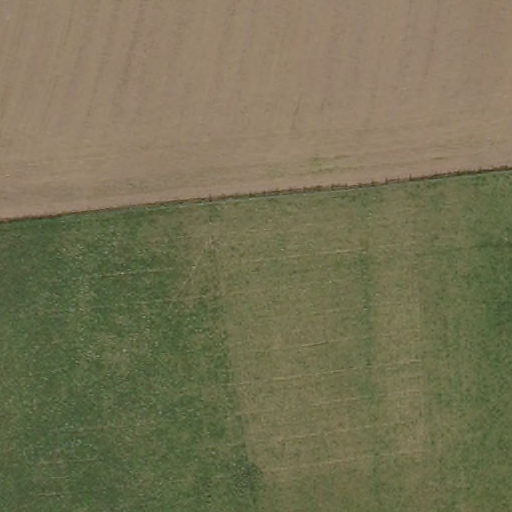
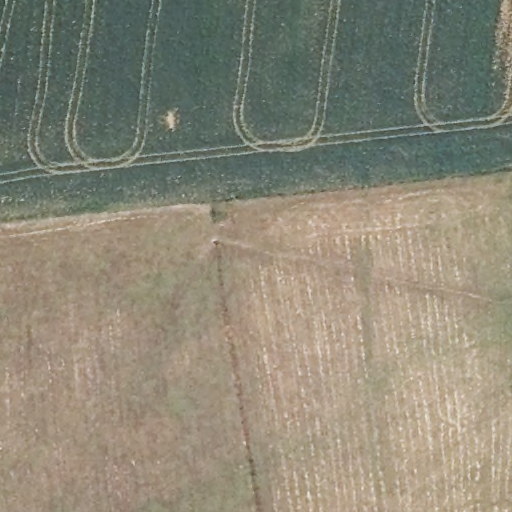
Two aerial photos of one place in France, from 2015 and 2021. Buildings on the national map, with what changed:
[]

